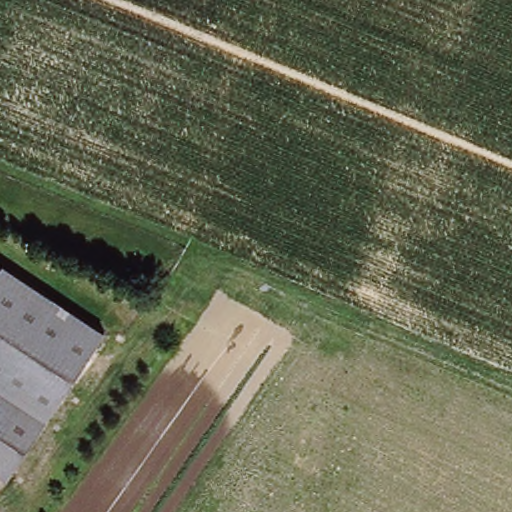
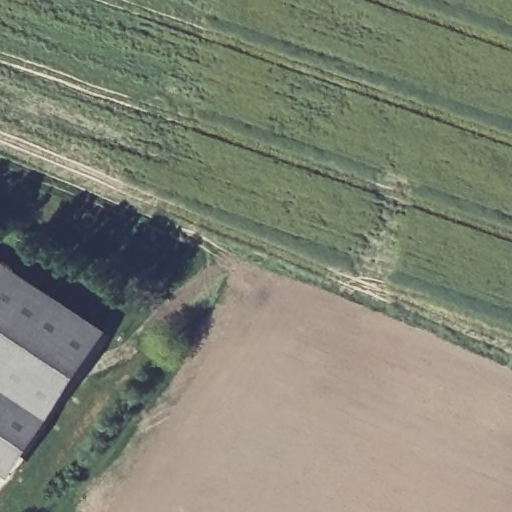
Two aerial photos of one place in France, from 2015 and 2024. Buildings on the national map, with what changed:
unchanged [(110,330),(13,482),(0,475),(0,262),(110,330)]

